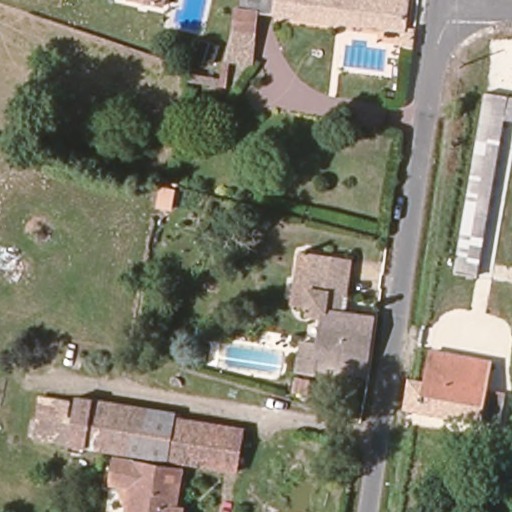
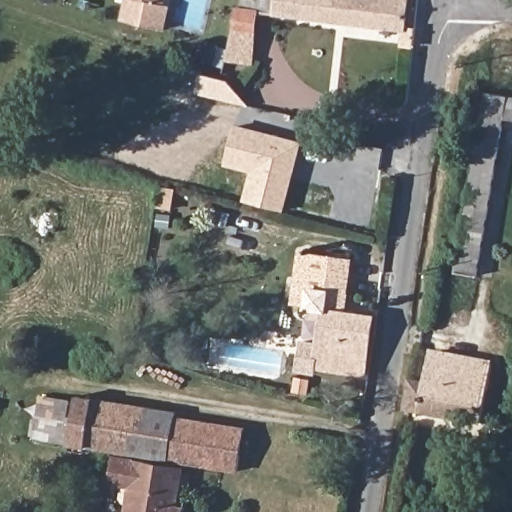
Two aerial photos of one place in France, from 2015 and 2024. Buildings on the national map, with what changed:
unchanged [(141,0),(162,0),(161,5),(141,0)]
unchanged [(410,0),(407,29),(263,12),(245,9),(247,0),(410,0)]
unchanged [(245,9),(263,12),(254,54),(229,49),(238,7),(245,9)]
unchanged [(221,76),(226,53),(249,58),(245,82),(221,76)]
unchanged [(466,112),(485,115),(490,91),(512,95),(512,121),(508,120),(485,264),(432,257),(466,112)]
new [(251,172),(225,166),(235,125),(302,142),(285,212),(242,202),(251,172)]
unchanged [(322,365),(330,309),(316,307),(298,305),(300,287),(304,251),(357,258),(351,312),(383,316),(374,373),(322,365)]
unchanged [(437,381),(442,355),(497,365),(485,423),(413,409),(410,408),(417,378),(437,381)]
unchanged [(186,465),(179,503),(190,504),(189,512),(121,512),(126,487),(108,483),(112,453),(91,451),(74,448),(36,440),(41,394),(79,397),(96,400),(247,424),(241,476),(186,465)]

